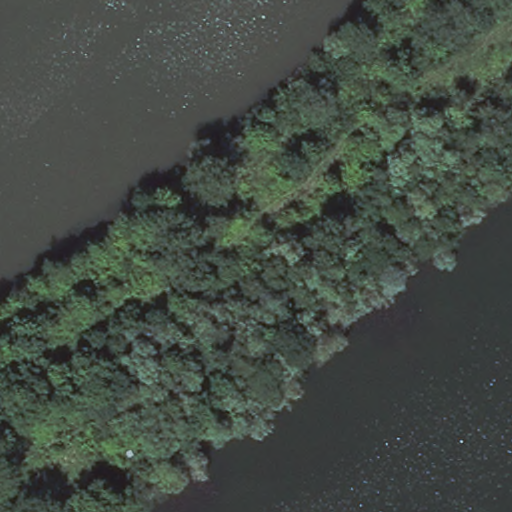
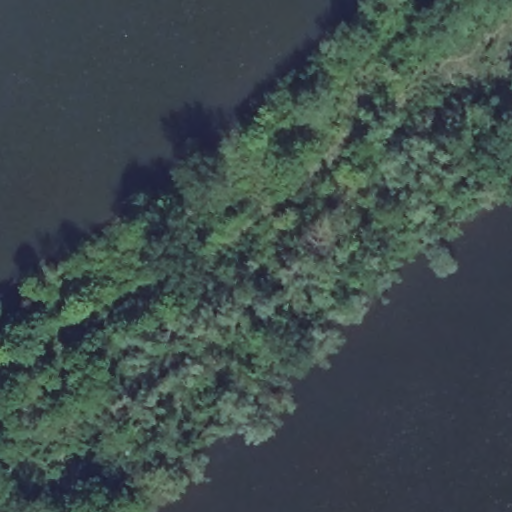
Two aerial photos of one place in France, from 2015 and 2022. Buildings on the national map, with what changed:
[]

